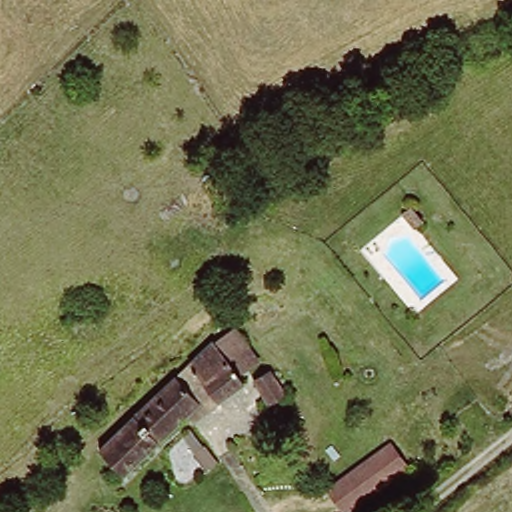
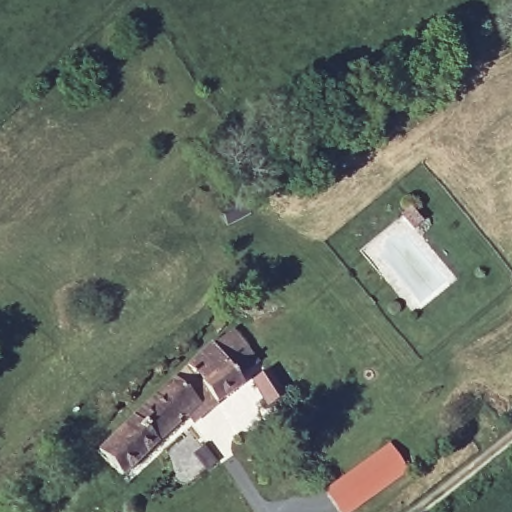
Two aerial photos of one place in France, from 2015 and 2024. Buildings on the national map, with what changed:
unchanged [(400,208),(411,228),(400,234),(389,215),(400,208)]
unchanged [(110,475),(90,451),(207,357),(225,345),(239,362),(245,370),(228,383),(234,390),(186,429),(177,419),(132,457),(110,475)]
unchanged [(297,403),(284,412),(268,391),(280,382),(297,403)]
unchanged [(345,477),(394,445),(410,471),(361,502),(345,512),(338,512),(324,490),(345,477)]
unchanged [(196,448),(205,465),(196,470),(187,453),(196,448)]

